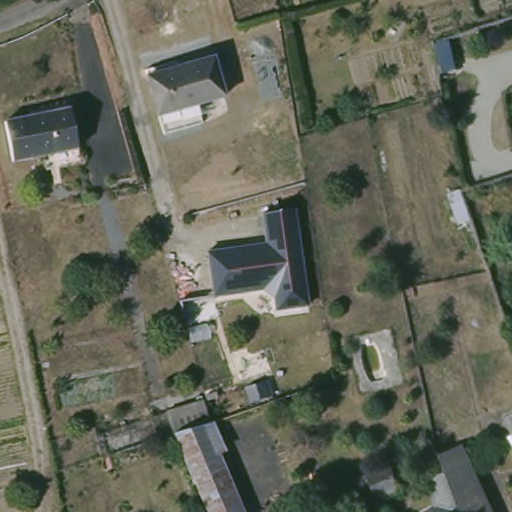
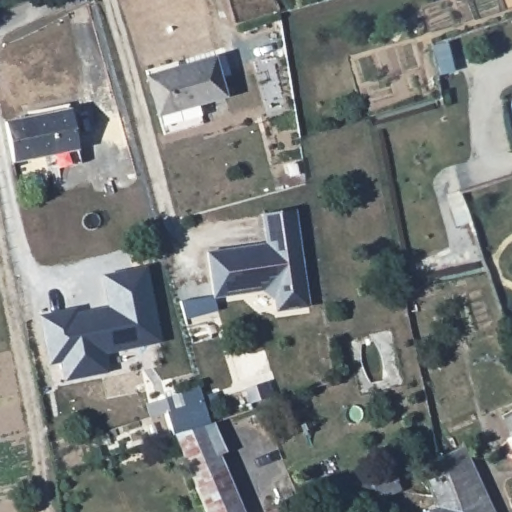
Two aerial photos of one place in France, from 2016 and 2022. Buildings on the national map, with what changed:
unchanged [(441,57),(449,56),(452,72),(445,74),(441,57)]
unchanged [(182,71),(211,62),(223,101),(156,122),(143,76),(180,66),(182,71)]
unchanged [(75,156),(11,170),(3,131),(34,124),(33,117),(66,109),(75,156)]
unchanged [(261,208),(293,203),(307,300),(275,305),(273,292),(262,283),(213,291),(206,247),(251,240),(252,247),(259,246),(265,237),(261,208)]
new [(75,307),(76,312),(108,307),(101,273),(148,265),(163,342),(106,352),(110,372),(64,381),(60,361),(48,363),(39,314),(75,307)]
unchanged [(512,423),(512,425),(511,423),(512,423)]
unchanged [(176,437),(209,425),(210,425),(220,447),(213,450),(240,512),(206,512),(176,437)]
unchanged [(423,490),(440,482),(430,456),(462,444),(486,512),(430,512),(423,490)]
unchanged [(400,466),(408,490),(372,506),(365,497),(360,480),(400,466)]
unchanged [(266,506),(282,501),(287,512),(269,512),(266,506)]

